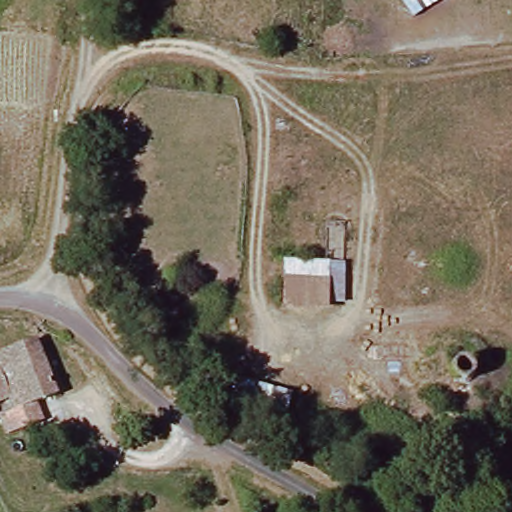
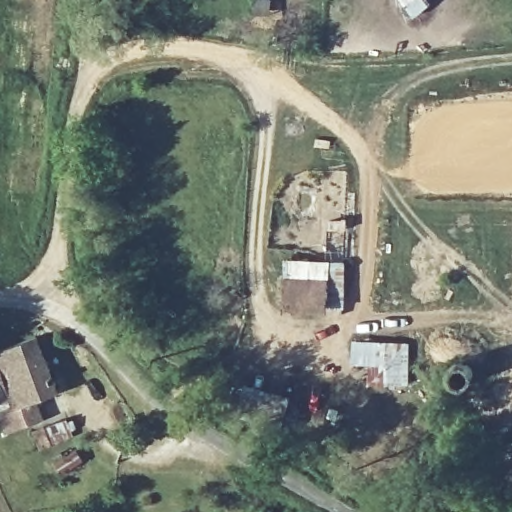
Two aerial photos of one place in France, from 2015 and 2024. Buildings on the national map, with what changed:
unchanged [(285,258),(331,261),(345,261),(343,302),(328,302),(327,313),(283,309),(285,258)]
unchanged [(14,408),(0,366),(0,346),(37,335),(57,394),(32,402),(40,423),(31,426),(14,431),(7,434),(4,435),(0,424),(0,413),(5,411),(14,408)]
new [(405,383),(386,381),(388,367),(352,361),(355,337),(410,343),(405,383)]
unchanged [(453,374),(454,366),(459,363),(465,364),(470,368),(470,374),(469,381),(464,383),(457,382),(453,374)]

